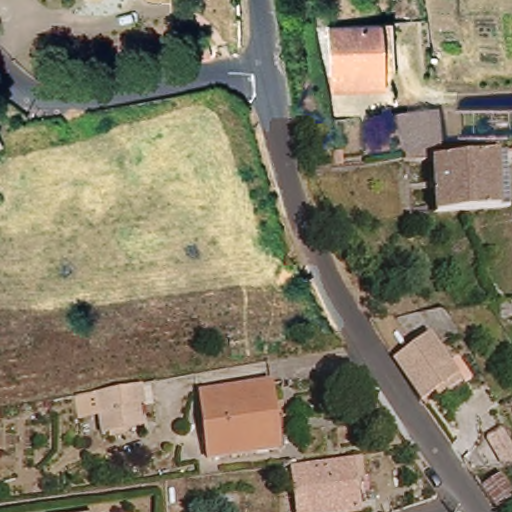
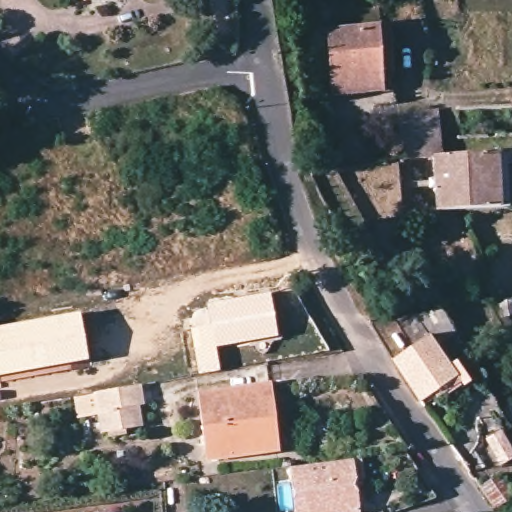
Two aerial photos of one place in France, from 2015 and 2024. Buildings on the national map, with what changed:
unchanged [(379,0),(398,0),(398,1),(380,2),(379,0)]
unchanged [(384,82),(377,75),(373,23),(385,22),(388,70),(384,82)]
unchanged [(375,75),(325,78),(320,27),(329,26),(373,23),(375,75)]
unchanged [(188,67),(182,45),(204,41),(208,64),(188,67)]
unchanged [(377,74),(377,75),(378,89),(326,92),(325,78),(377,74)]
unchanged [(462,110),(512,109),(512,139),(463,141),(462,110)]
unchanged [(446,116),(450,163),(440,164),(409,165),(407,165),(404,122),(446,116)]
unchanged [(440,164),(450,163),(501,161),(503,213),(443,217),(440,164)]
new [(197,373),(190,326),(207,323),(205,304),(270,292),(278,337),(215,347),(220,371),(197,373)]
new [(0,376),(0,329),(79,315),(88,361),(0,376)]
unchanged [(445,395),(439,386),(420,397),(392,356),(413,342),(431,332),(458,374),(465,383),(445,395)]
new [(141,386),(143,407),(141,407),(144,428),(100,433),(98,415),(78,418),(75,398),(141,386)]
demolished [(156,412),(146,412),(149,433),(113,436),(111,417),(108,392),(151,387),(156,412)]
unchanged [(274,395),(283,459),(208,466),(202,400),(274,395)]
unchanged [(512,452),(512,460),(503,466),(487,441),(500,433),(512,452)]
unchanged [(290,477),(350,471),(360,470),(365,512),(295,512),(290,477)]
unchanged [(498,479),(512,502),(495,511),(481,488),(498,479)]

